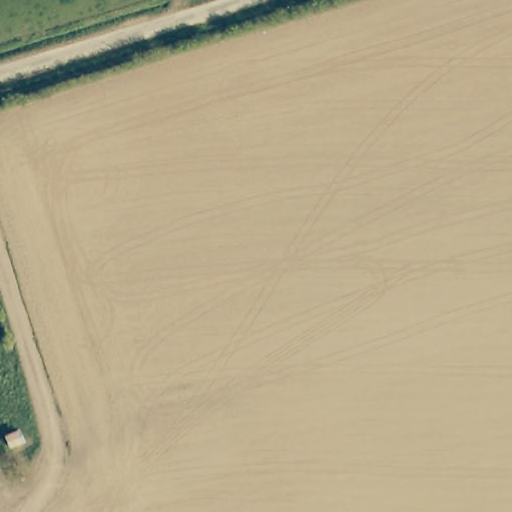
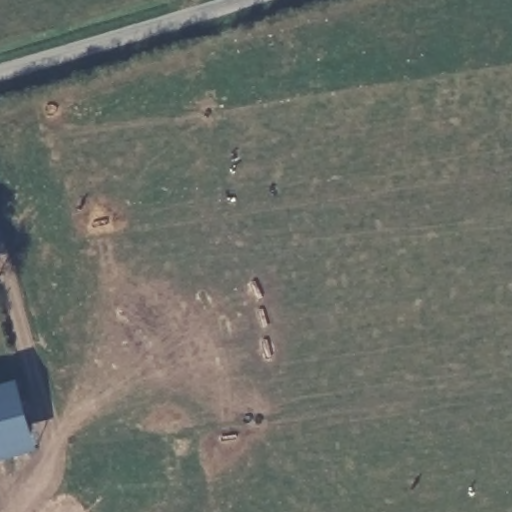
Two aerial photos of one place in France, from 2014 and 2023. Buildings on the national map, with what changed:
new [(19,383),(38,452),(0,463),(0,388),(19,383)]

